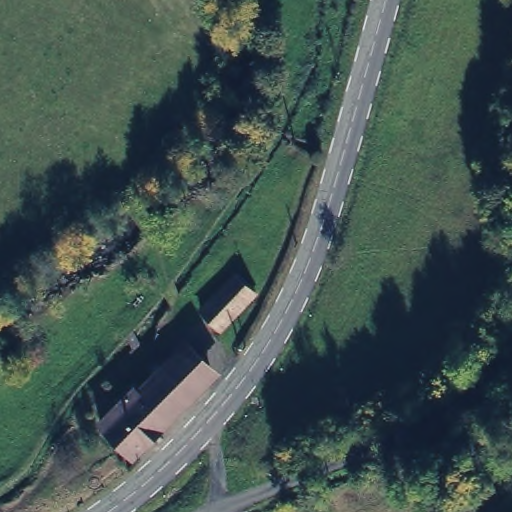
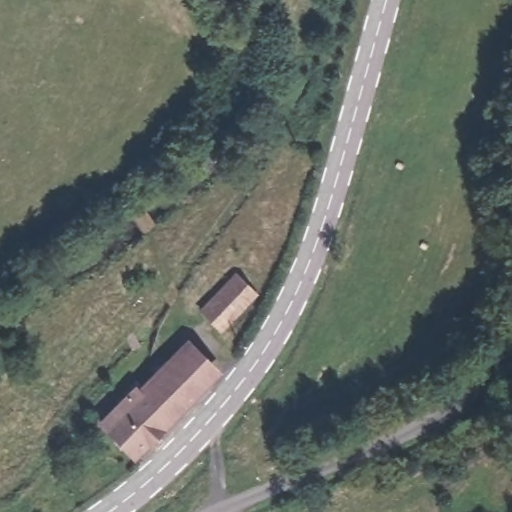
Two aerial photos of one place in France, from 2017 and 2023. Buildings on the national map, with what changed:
unchanged [(256,293),(221,332),(204,317),(240,278),(256,293)]
unchanged [(216,376),(141,452),(107,420),(148,379),(154,383),(188,347),(216,376)]

